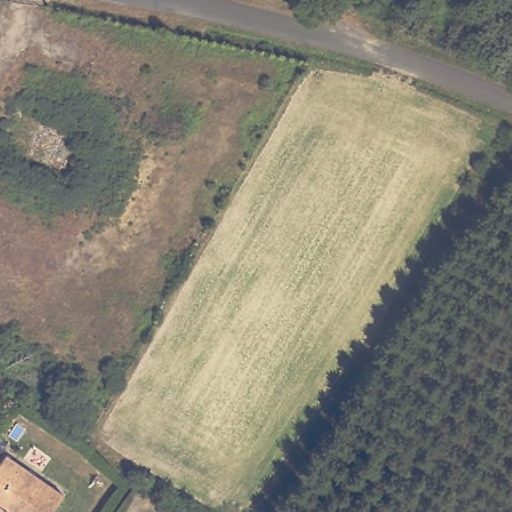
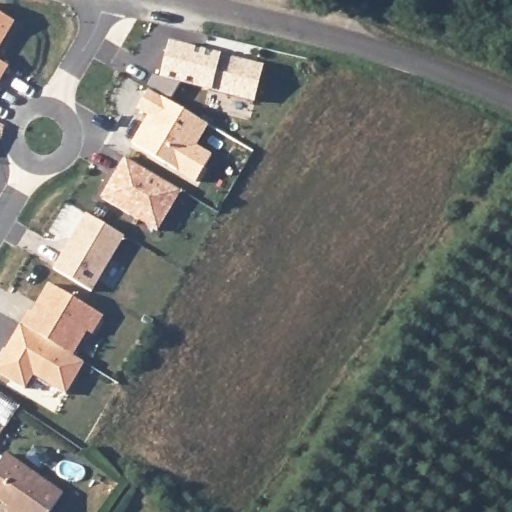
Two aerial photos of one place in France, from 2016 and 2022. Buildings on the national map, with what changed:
new [(11,22),(0,40),(0,15),(11,22)]
new [(151,75),(163,79),(172,44),(261,67),(253,101),(182,83),(170,104),(149,91),(143,88),(151,75)]
new [(5,66),(0,74),(0,63),(5,66)]
new [(150,118),(138,110),(149,91),(170,104),(208,126),(195,148),(212,158),(197,183),(133,146),(150,118)]
new [(125,159),(182,192),(158,233),(102,199),(125,159)]
new [(87,215),(124,238),(91,293),(54,271),(87,215)]
new [(29,311),(39,317),(44,308),(37,304),(49,285),(104,317),(92,336),(87,332),(73,357),(21,326),(29,311)]
new [(21,326),(73,357),(84,364),(66,395),(33,376),(25,390),(0,375),(0,361),(21,326)]
unchanged [(13,502),(0,494),(0,464),(11,449),(68,489),(52,512),(17,512),(10,506),(13,502)]

